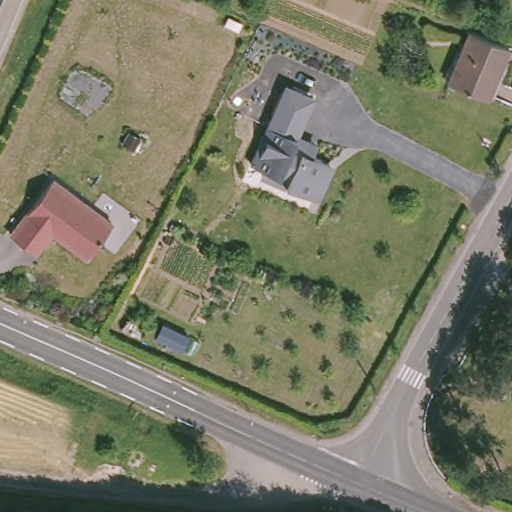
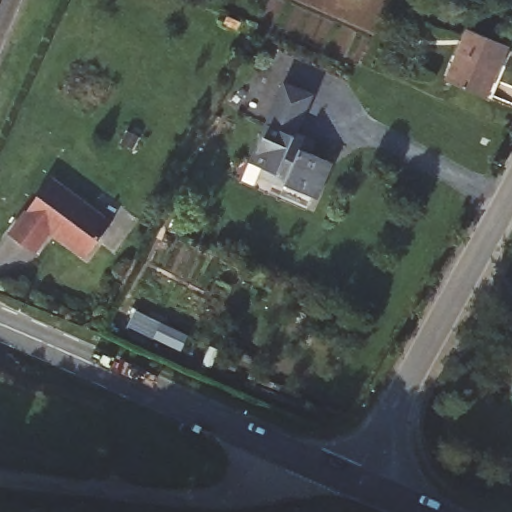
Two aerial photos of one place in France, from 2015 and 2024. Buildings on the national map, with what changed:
unchanged [(491,92),(452,74),(474,24),(512,39),(491,92)]
unchanged [(264,170),(250,163),(284,87),(313,99),(296,137),(315,145),(311,154),(329,162),(312,198),(285,186),(261,175),(264,170)]
unchanged [(51,177),(112,222),(86,256),(51,230),(34,252),(9,233),(51,177)]
unchanged [(512,369),(508,366),(512,357),(512,369)]

